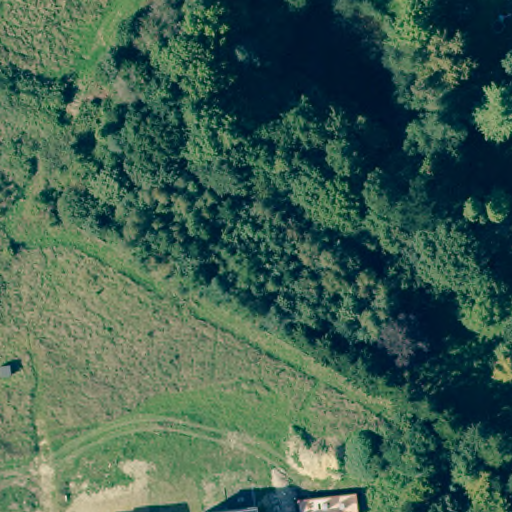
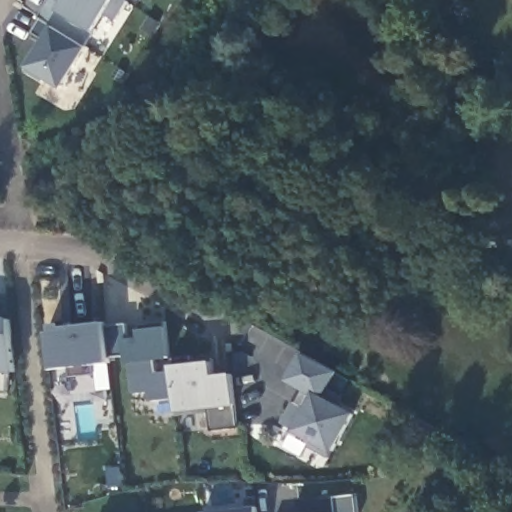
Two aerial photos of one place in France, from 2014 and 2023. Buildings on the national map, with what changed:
new [(51,0),(58,0),(63,2),(65,0),(127,0),(128,0),(115,20),(104,14),(93,31),(94,32),(87,47),(61,87),(45,78),(43,81),(25,72),(28,67),(44,40),(33,34),(39,17),(51,0)]
new [(17,372),(9,372),(6,395),(0,394),(0,315),(11,316),(17,372)]
new [(170,360),(189,357),(189,364),(213,361),(214,375),(233,373),(235,405),(237,429),(211,432),(209,412),(177,416),(177,410),(175,400),(149,401),(148,392),(133,394),(128,362),(128,357),(110,360),(110,363),(53,370),(49,332),(51,331),(51,325),(64,323),(64,326),(106,321),(106,326),(128,324),(129,338),(141,336),(140,330),(167,326),(170,360)]
new [(338,372),(329,389),(339,393),(334,401),(355,413),(332,451),(328,458),(307,447),(310,440),(295,431),(283,423),(293,403),(305,410),(314,396),(288,381),(303,353),(338,372)]
unchanged [(356,495),(358,512),(299,512),(298,501),(356,495)]
unchanged [(257,512),(217,512),(256,508),(257,512)]

